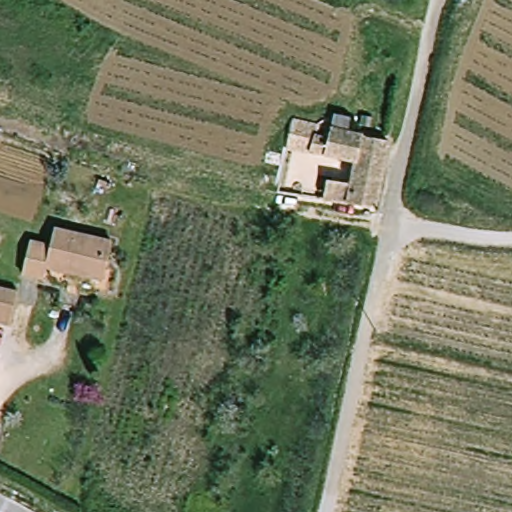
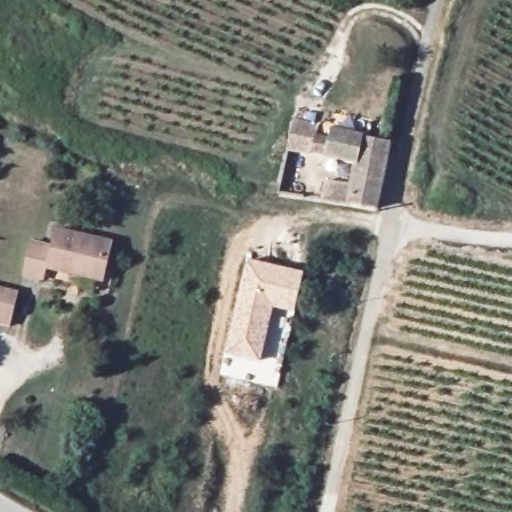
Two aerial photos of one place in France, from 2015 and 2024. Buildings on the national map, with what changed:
unchanged [(291,122),(294,122),(317,127),(315,137),(327,138),(329,128),(388,137),(387,146),(375,206),(327,202),(331,182),(351,184),(355,162),(308,155),(285,151),(286,148),(291,122)]
unchanged [(46,240),(50,224),(109,239),(100,267),(95,283),(44,271),(40,282),(20,277),(30,235),(46,240)]
new [(294,313),(273,308),(260,362),(226,353),(247,260),(304,272),(294,313)]
unchanged [(116,270),(108,287),(104,299),(40,282),(44,271),(95,283),(100,267),(116,270)]
unchanged [(0,319),(0,288),(17,292),(11,322),(0,319)]

